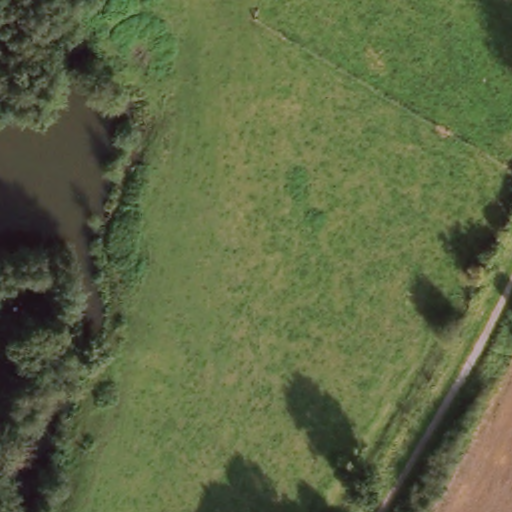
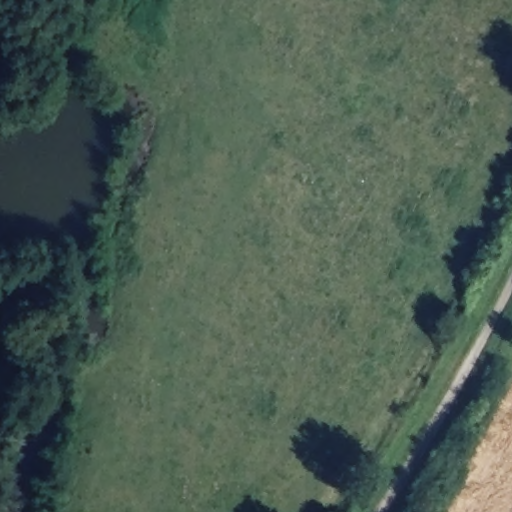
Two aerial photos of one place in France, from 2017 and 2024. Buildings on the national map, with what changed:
[]

